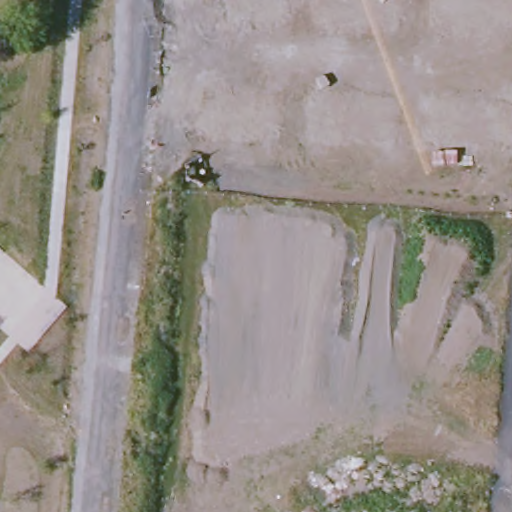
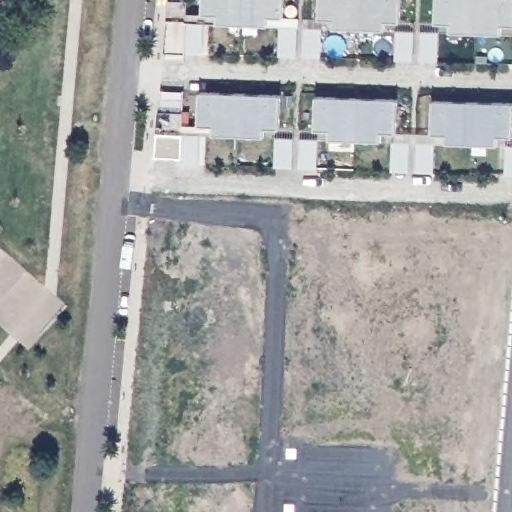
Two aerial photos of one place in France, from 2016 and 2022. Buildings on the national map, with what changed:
new [(169,0),(185,0),(183,24),(167,22),(169,0)]
new [(203,0),(284,0),(284,18),(269,17),(268,26),(217,23),(217,15),(202,14),(203,0)]
new [(386,19),(385,28),(334,26),(335,18),(317,18),(318,0),(401,0),(400,21),(386,19)]
new [(452,21),(435,22),(435,0),(512,0),(512,24),(501,23),(500,33),(451,32),(452,21)]
new [(200,92),(280,95),(279,129),(264,128),(264,136),(213,134),(214,126),(199,125),(200,92)]
new [(397,131),(381,130),(380,141),(330,138),(332,128),(315,128),(315,95),(397,98),(397,131)]
new [(160,97),(183,99),(178,159),(155,157),(160,97)]
new [(512,135),(497,135),(497,143),(447,142),(448,133),(430,133),(431,100),(512,102),(512,135)]

